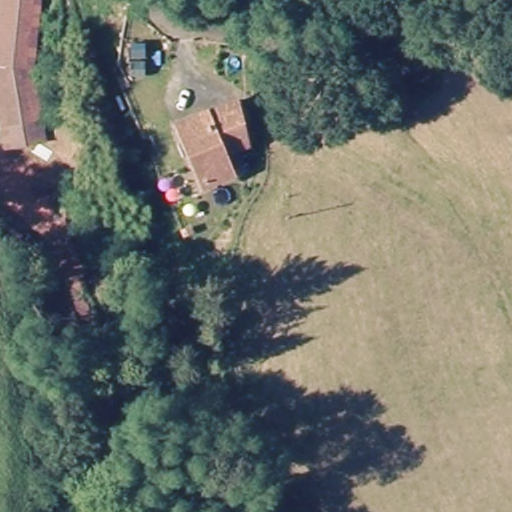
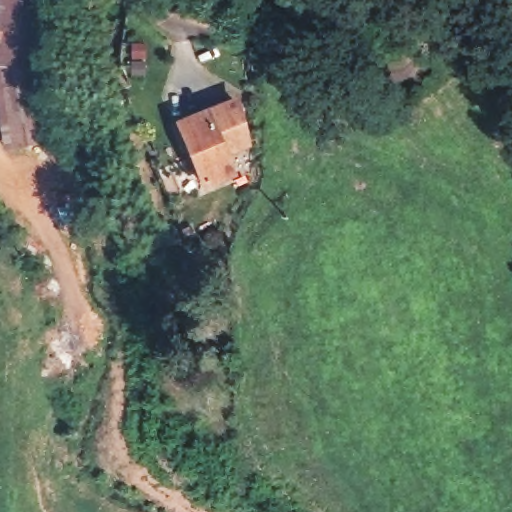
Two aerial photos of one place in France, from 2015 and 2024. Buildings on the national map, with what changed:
unchanged [(31,68),(37,146),(28,147),(0,148),(0,0),(38,0),(31,68)]
unchanged [(240,91),(257,144),(238,153),(248,174),(200,192),(173,118),(240,91)]

